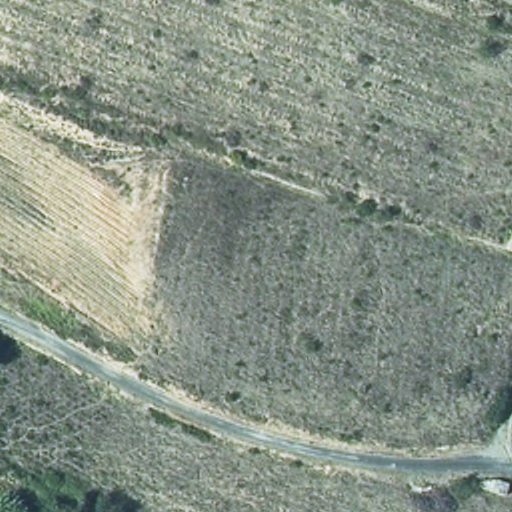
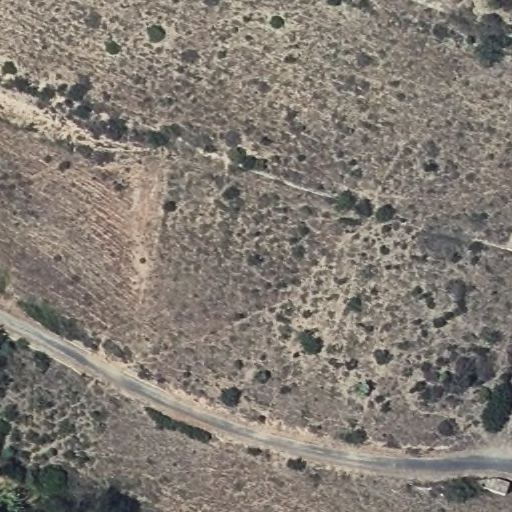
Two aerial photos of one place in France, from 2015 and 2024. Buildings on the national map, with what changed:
unchanged [(512,227),(512,249),(505,246),(512,227)]

